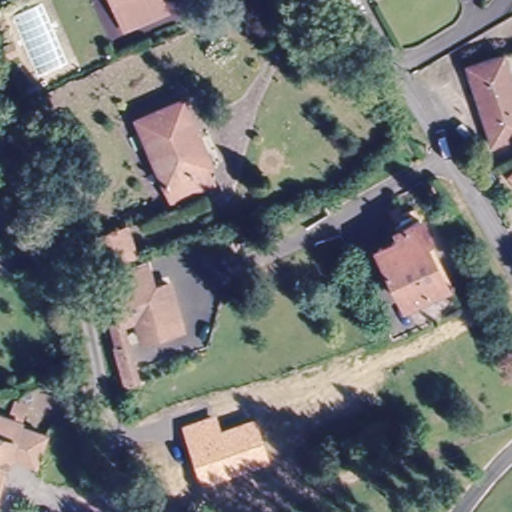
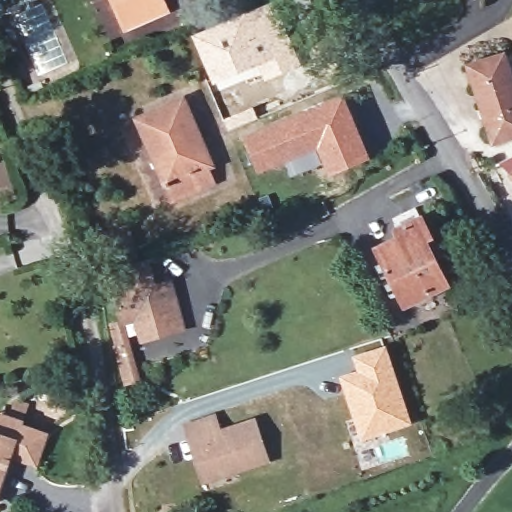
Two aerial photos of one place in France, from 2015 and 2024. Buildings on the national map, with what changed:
unchanged [(167,9),(125,28),(113,0),(163,0),(167,9)]
new [(274,0),(302,64),(265,80),(258,68),(246,73),(248,76),(218,90),(193,35),(274,0)]
unchanged [(506,75),(512,94),(512,134),(488,142),(463,63),(512,47),(512,74),(506,75)]
new [(344,94),(371,158),(327,176),(322,164),(290,177),(285,164),(258,174),(243,137),(344,94)]
unchanged [(207,168),(213,181),(171,200),(135,117),(184,96),(204,142),(213,164),(207,168)]
unchanged [(512,173),(512,177),(510,174),(512,173)]
unchanged [(425,237),(447,282),(404,304),(375,247),(398,236),(393,226),(402,222),(421,213),(431,234),(425,237)]
unchanged [(135,224),(143,250),(108,261),(100,235),(135,224)]
unchanged [(183,323),(147,334),(140,313),(124,318),(115,289),(109,271),(144,260),(146,279),(148,287),(169,280),(183,323)]
unchanged [(123,345),(135,340),(143,363),(131,368),(123,345)]
new [(357,368),(353,355),(386,344),(413,423),(362,439),(339,375),(357,368)]
unchanged [(218,411),(222,428),(256,418),(270,465),(200,485),(183,421),(218,411)]
unchanged [(23,425),(22,428),(49,438),(39,463),(14,454),(0,489),(0,426),(4,417),(23,425)]

